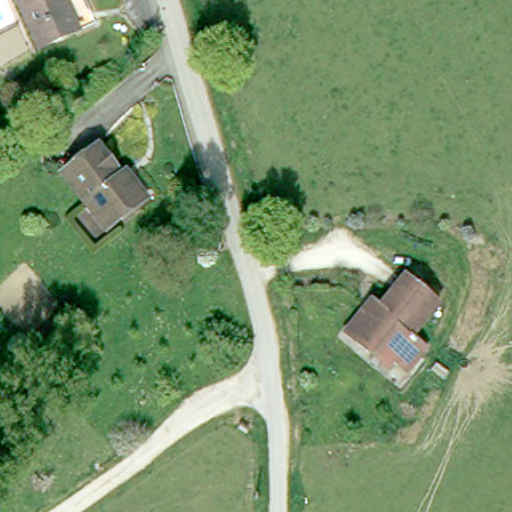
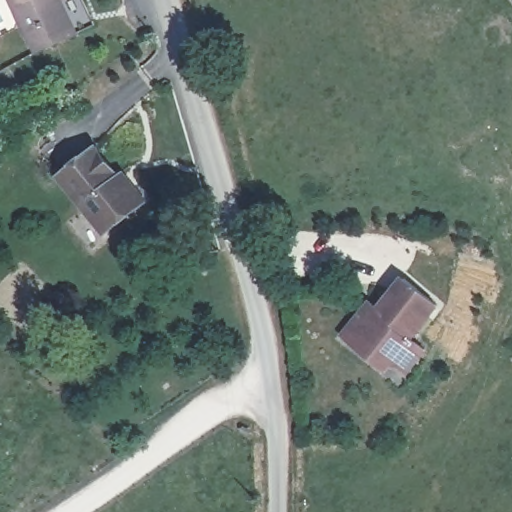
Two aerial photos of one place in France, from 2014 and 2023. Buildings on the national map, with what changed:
unchanged [(40,51),(17,0),(65,0),(71,15),(80,33),(75,35),(40,51)]
unchanged [(63,180),(100,150),(130,189),(134,187),(147,204),(107,236),(63,180)]
unchanged [(368,350),(346,333),(366,309),(374,300),(380,305),(407,275),(442,301),(415,335),(428,346),(410,370),(395,359),(388,367),(368,350)]

